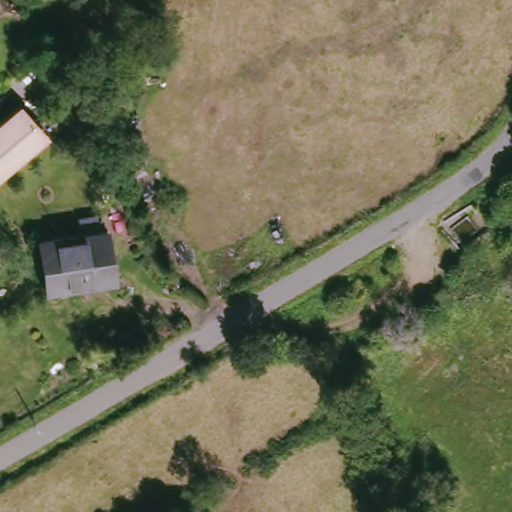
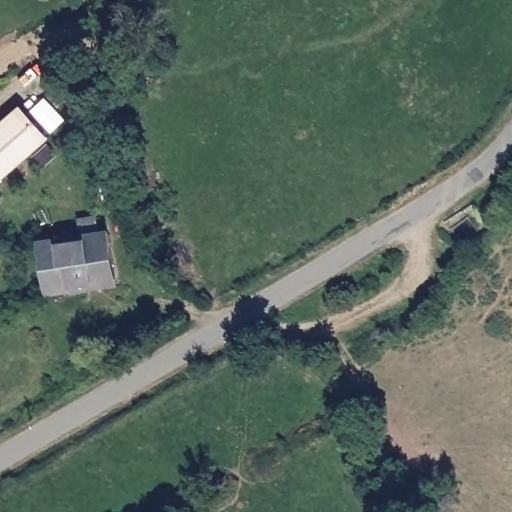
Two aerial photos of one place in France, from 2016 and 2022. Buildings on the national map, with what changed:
unchanged [(47,137),(0,178),(0,125),(22,107),(47,137)]
unchanged [(483,211),(452,229),(445,218),(476,199),(483,211)]
unchanged [(105,241),(109,240),(115,288),(52,296),(47,247),(87,242),(85,223),(102,222),(105,241)]

